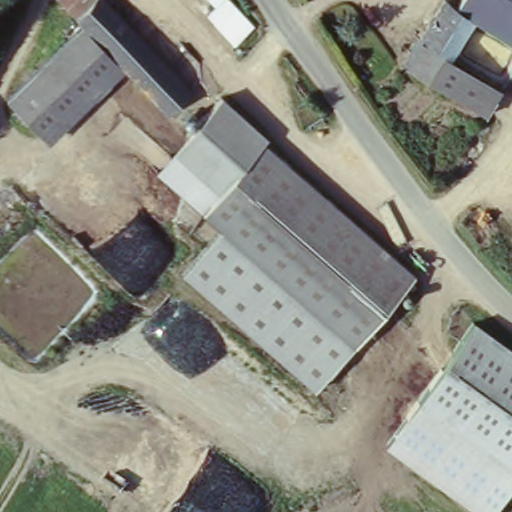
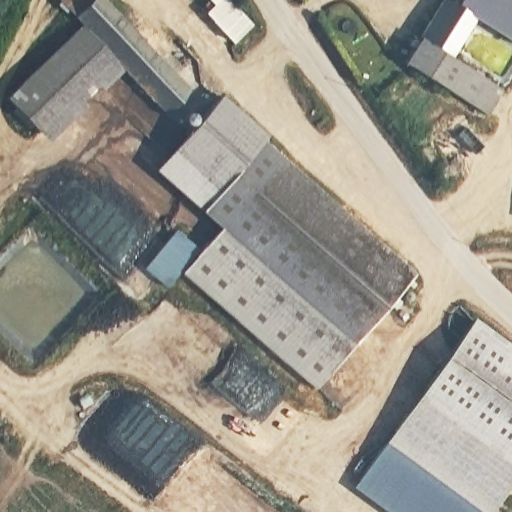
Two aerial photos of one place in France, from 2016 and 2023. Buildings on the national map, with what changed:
unchanged [(138,85),(133,88),(120,74),(116,68),(120,63),(81,26),(73,17),(58,0),(105,0),(145,42),(189,91),(167,114),(138,85)]
new [(254,25),(234,44),(206,14),(215,6),(209,0),(230,0),(254,25)]
unchanged [(473,18),(449,58),(420,38),(444,0),(447,0),(457,5),(473,18)]
unchanged [(512,41),(473,18),(457,5),(460,0),(512,0),(512,41)]
unchanged [(145,42),(163,25),(208,73),(189,91),(145,42)]
unchanged [(48,142),(4,96),(81,26),(120,63),(116,68),(120,74),(48,142)]
unchanged [(449,58),(500,90),(483,114),(405,63),(420,38),(449,58)]
unchanged [(201,214),(152,175),(223,98),(268,137),(261,147),(201,214)]
unchanged [(413,280),(312,393),(180,276),(220,231),(201,214),(261,147),(413,280)]
unchanged [(512,484),(492,512),(474,512),(384,445),(473,322),(512,351),(512,484)]
new [(389,512),(356,488),(384,445),(474,512),(389,512)]

